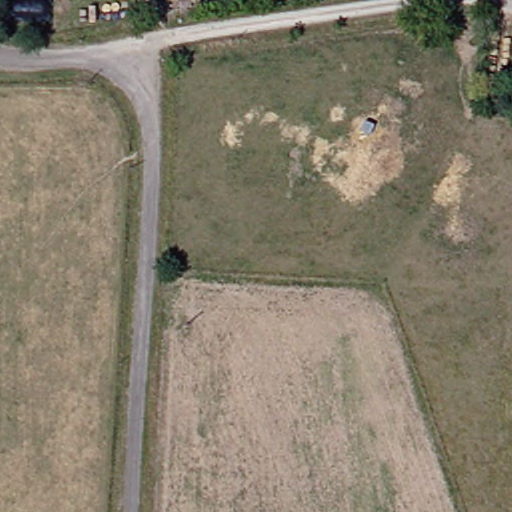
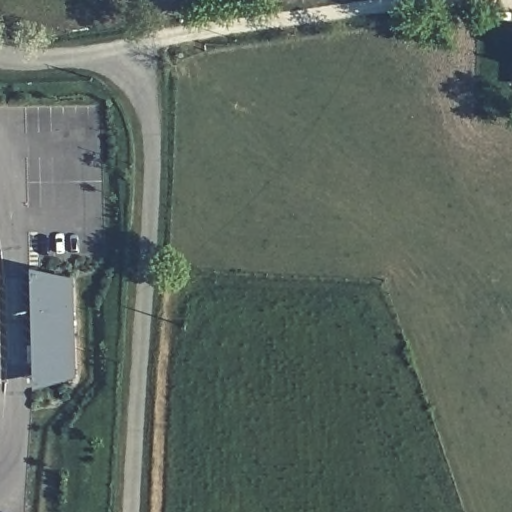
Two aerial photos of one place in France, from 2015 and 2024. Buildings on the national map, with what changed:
new [(32,324),(29,268),(71,279),(74,376),(33,390),(33,368),(32,324)]

